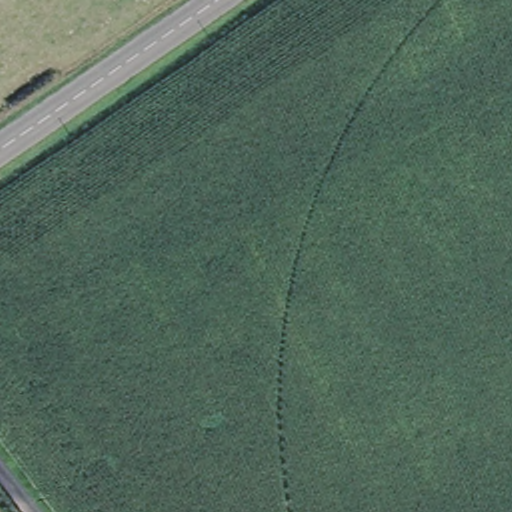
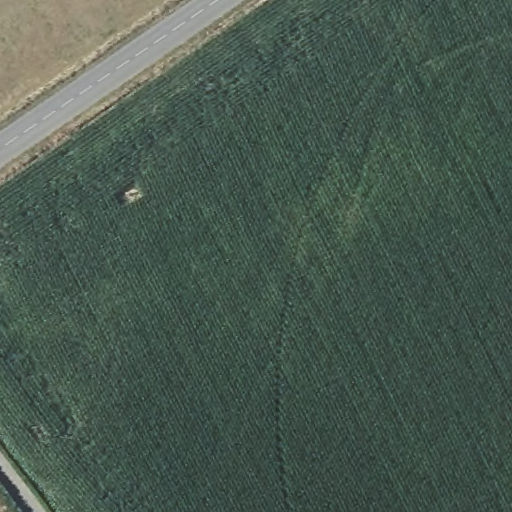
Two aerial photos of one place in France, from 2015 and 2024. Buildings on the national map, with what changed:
[]

